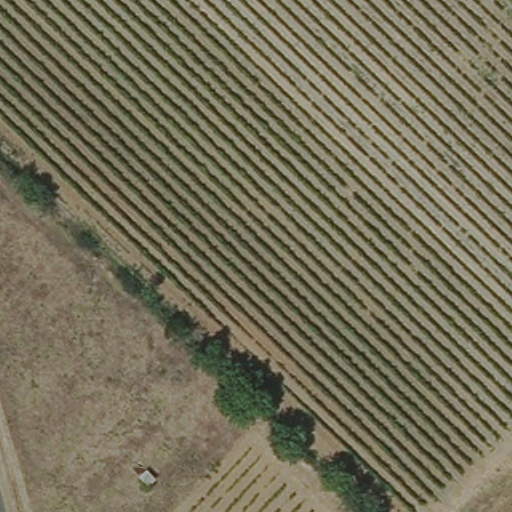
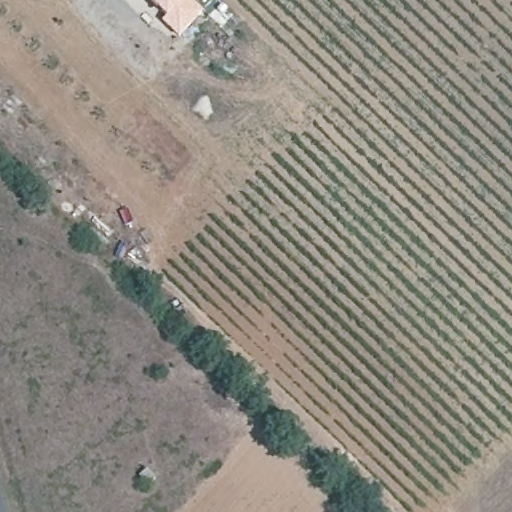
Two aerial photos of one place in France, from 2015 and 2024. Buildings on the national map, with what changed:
new [(177,37),(162,20),(164,18),(145,0),(190,0),(202,11),(177,37)]
unchanged [(139,477),(149,465),(163,475),(150,486),(139,477)]

